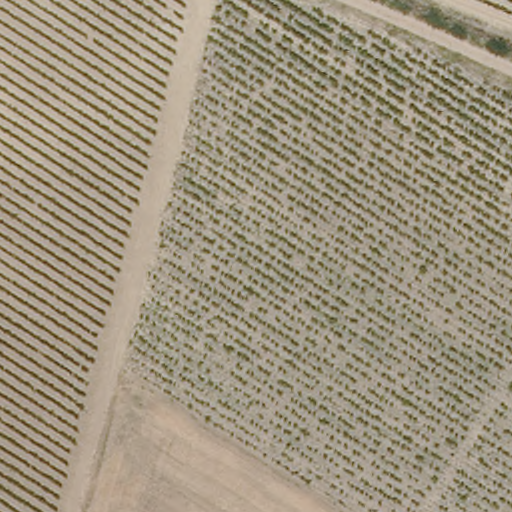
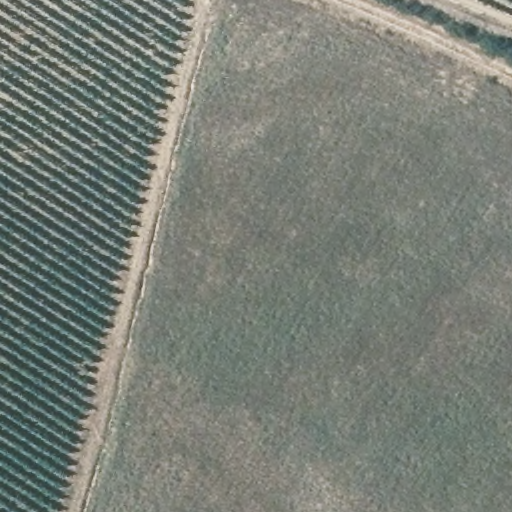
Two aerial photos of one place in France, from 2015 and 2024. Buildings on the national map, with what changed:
[]

